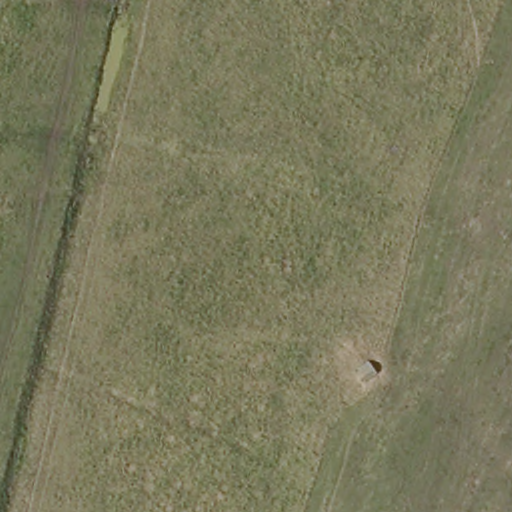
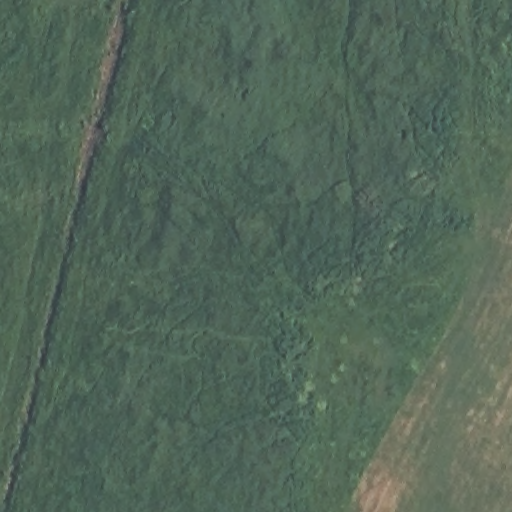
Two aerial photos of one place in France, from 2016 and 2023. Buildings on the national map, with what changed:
unchanged [(359,382),(367,396),(352,407),(342,395),(359,382)]

